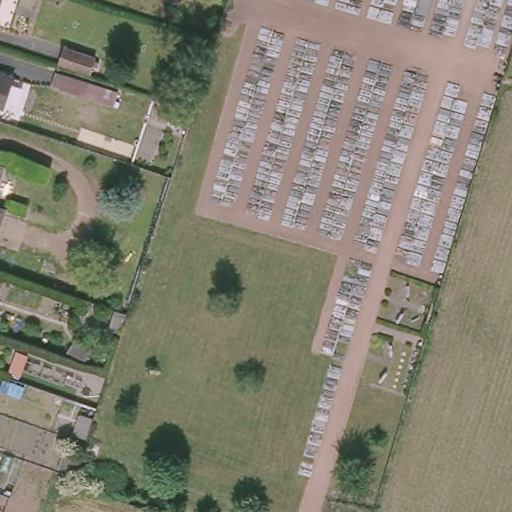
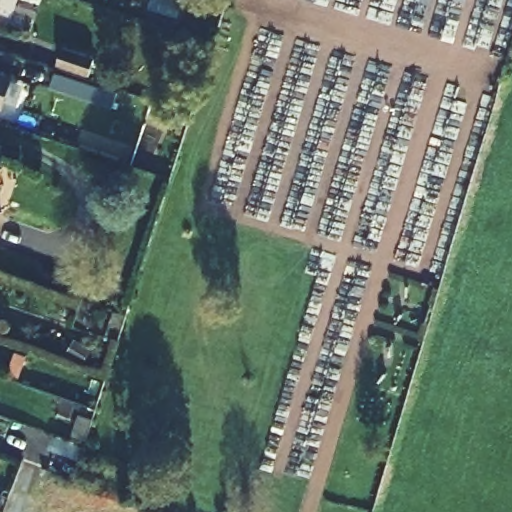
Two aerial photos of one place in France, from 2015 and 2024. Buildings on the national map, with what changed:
unchanged [(0,11),(0,0),(3,0),(0,11)]
unchanged [(63,46),(95,57),(90,70),(60,60),(63,46)]
unchanged [(85,95),(52,85),(56,70),(90,81),(85,95)]
unchanged [(0,75),(12,79),(3,106),(0,105),(0,75)]
unchanged [(0,178),(0,169),(2,170),(0,178)]
unchanged [(0,225),(0,211),(4,212),(0,225)]

